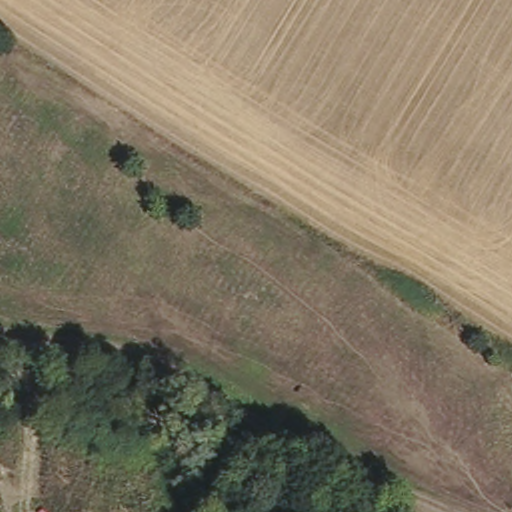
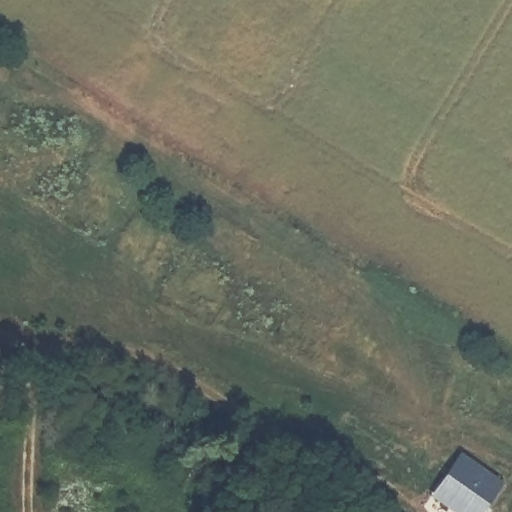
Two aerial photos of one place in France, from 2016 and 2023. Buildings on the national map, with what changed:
new [(503,482),(482,512),(454,512),(431,495),(461,453),(503,482)]

